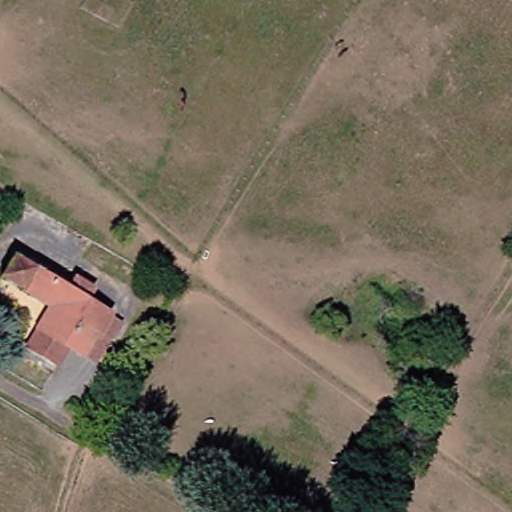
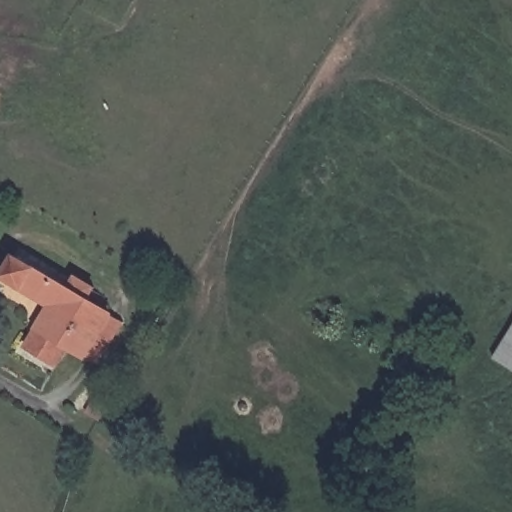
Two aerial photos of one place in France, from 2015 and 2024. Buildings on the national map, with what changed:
unchanged [(103,363),(91,355),(90,357),(73,347),(62,365),(33,346),(55,306),(7,277),(18,257),(73,290),(80,277),(99,288),(92,301),(115,315),(127,323),(103,363)]
new [(512,328),(512,370),(493,358),(512,328)]

